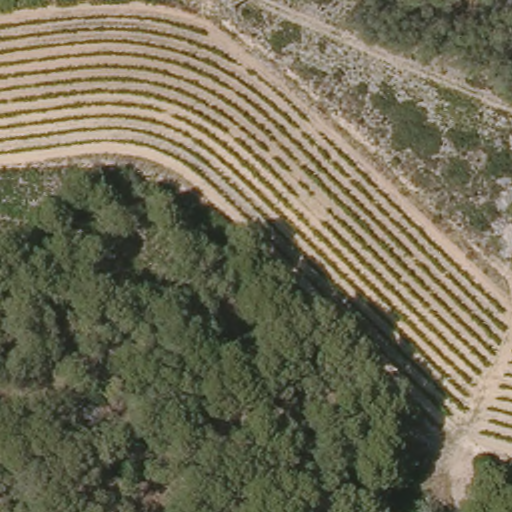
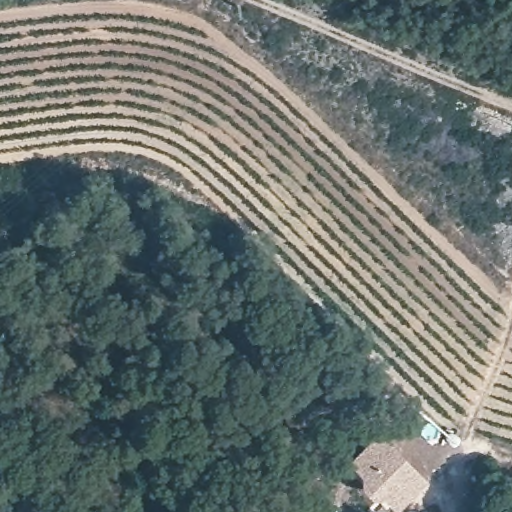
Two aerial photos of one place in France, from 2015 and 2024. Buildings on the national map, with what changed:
new [(428,481),(396,511),(382,496),(372,497),(359,485),(361,474),(347,460),(379,430),(428,481)]

